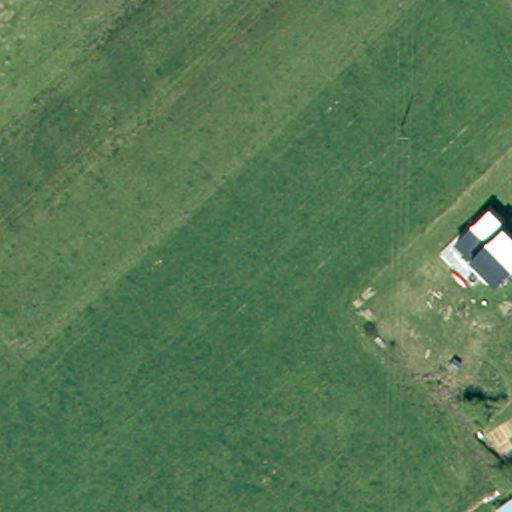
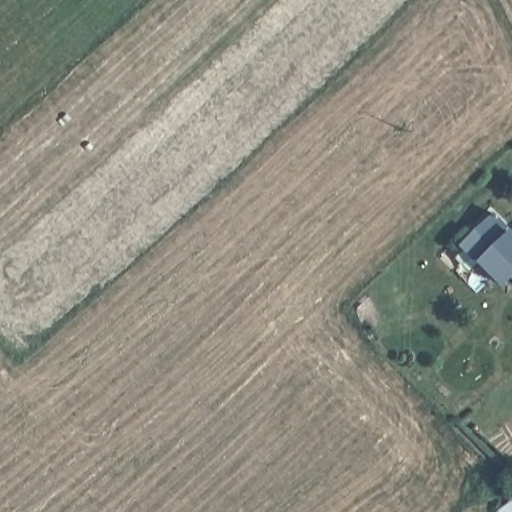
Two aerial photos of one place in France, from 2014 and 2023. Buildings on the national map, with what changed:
unchanged [(492,206),(505,221),(501,225),(510,234),(512,232),(512,275),(507,269),(495,281),(455,243),(492,206)]
unchanged [(512,500),(512,512),(498,512),(512,500)]

